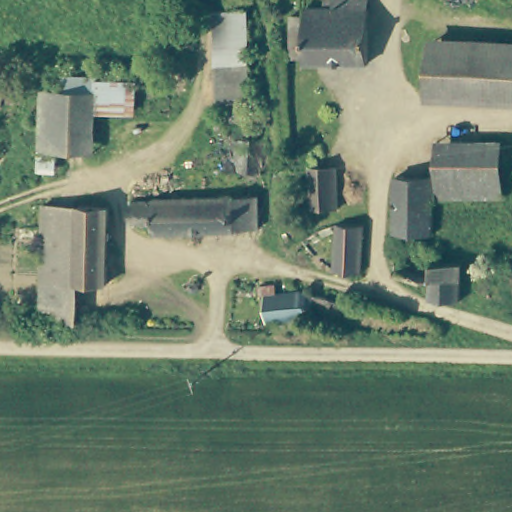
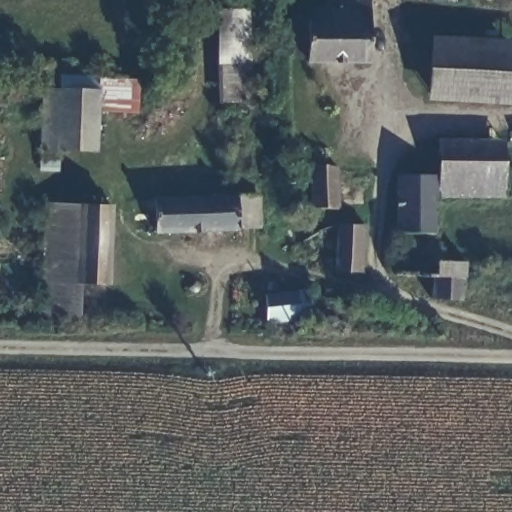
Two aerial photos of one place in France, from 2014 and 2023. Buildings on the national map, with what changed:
unchanged [(366,62),(305,61),(307,4),(330,5),(330,0),(367,0),(366,62)]
unchanged [(251,100),(253,138),(255,174),(229,174),(227,137),(222,104),(220,62),(221,9),(249,8),(251,100)]
unchanged [(512,35),(512,102),(426,100),(428,32),(512,35)]
unchanged [(101,86),(133,86),(133,113),(101,113),(101,150),(44,148),(45,90),(101,92),(101,86)]
unchanged [(442,175),(441,145),(509,145),(510,195),(442,196),(442,175)]
unchanged [(292,158),(321,158),(320,206),(290,206),(292,158)]
unchanged [(397,175),(442,175),(442,196),(442,200),(443,224),(441,224),(396,222),(397,175)]
unchanged [(148,236),(144,230),(130,230),(131,196),(231,194),(250,195),(249,233),(148,236)]
unchanged [(41,319),(42,294),(44,204),(63,202),(82,203),(81,283),(81,295),(81,320),(41,319)]
unchanged [(117,203),(116,283),(81,283),(82,203),(117,203)]
unchanged [(321,215),(340,216),(345,216),(344,267),(320,266),(321,215)]
unchanged [(468,296),(437,295),(436,269),(438,270),(443,269),(445,265),(444,260),(467,260),(468,296)]
unchanged [(342,317),(314,313),(271,318),(269,299),(271,292),(306,288),(313,288),(346,300),(342,317)]

